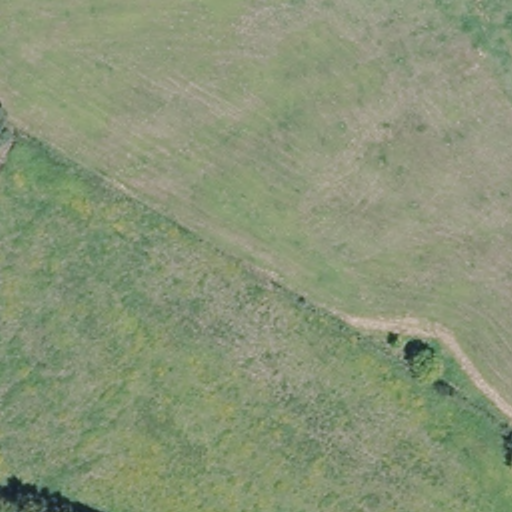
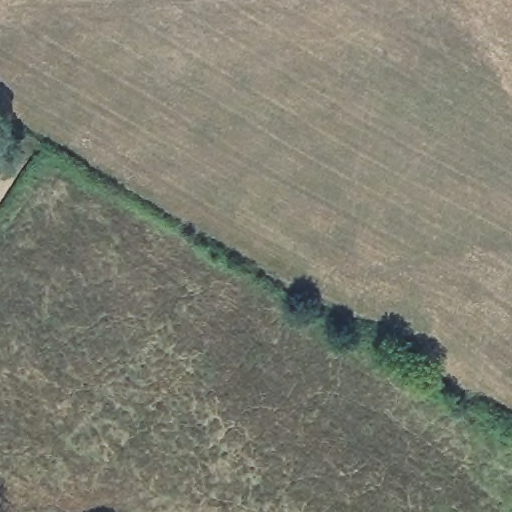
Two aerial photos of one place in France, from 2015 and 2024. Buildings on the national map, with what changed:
[]

